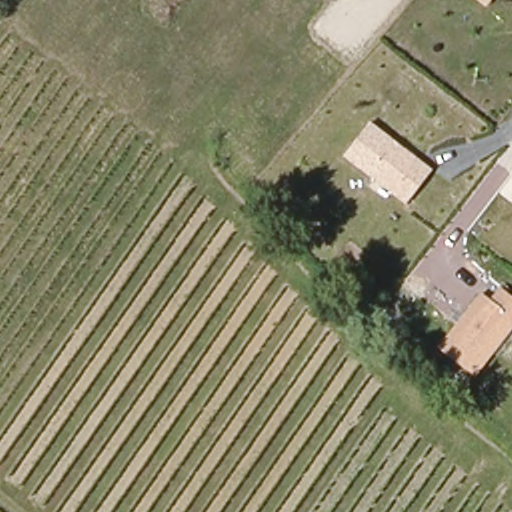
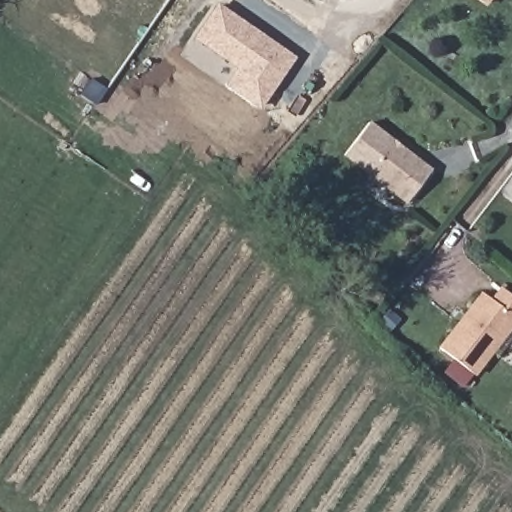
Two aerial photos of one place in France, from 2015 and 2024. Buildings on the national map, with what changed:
unchanged [(474,0),(494,0),(486,10),(474,0)]
new [(235,69),(190,39),(216,3),(296,58),(258,110),(224,85),(235,69)]
unchanged [(433,171),(410,205),(344,159),(367,125),(433,171)]
unchanged [(437,349),(483,295),(490,302),(501,288),(512,296),(512,330),(476,377),(437,349)]

